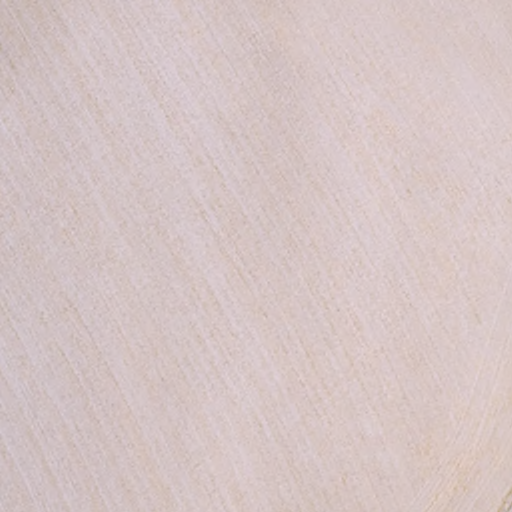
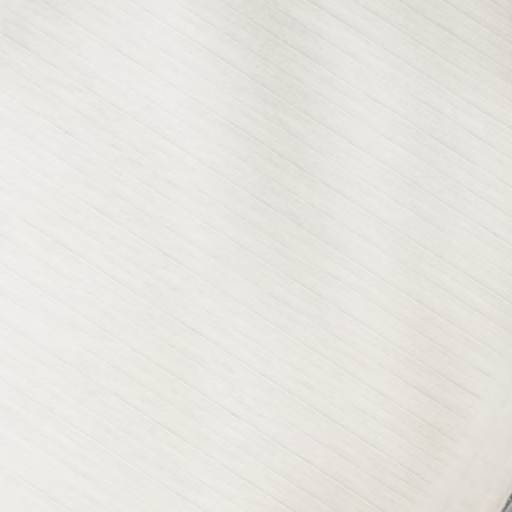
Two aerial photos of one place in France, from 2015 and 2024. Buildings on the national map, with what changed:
[]

